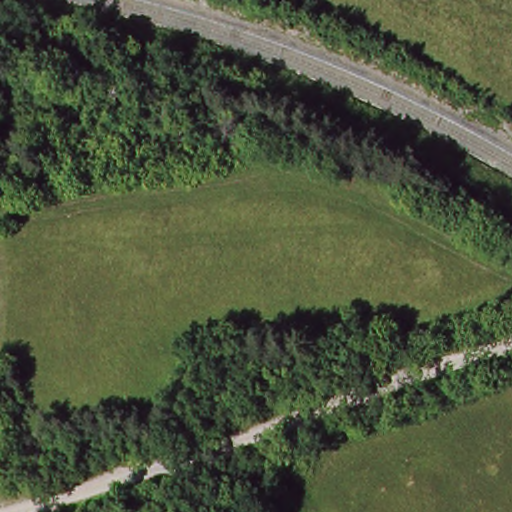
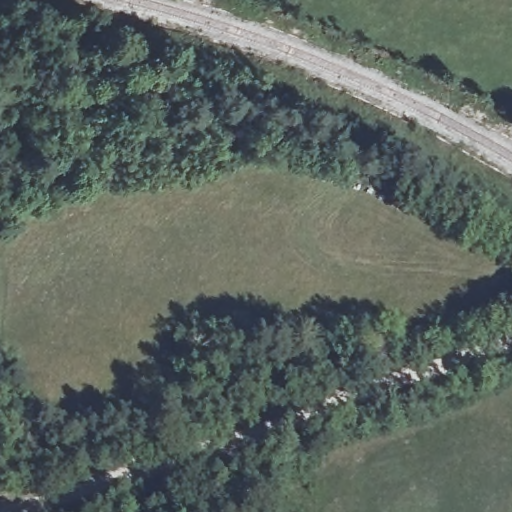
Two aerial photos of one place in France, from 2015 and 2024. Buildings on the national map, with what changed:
[]

